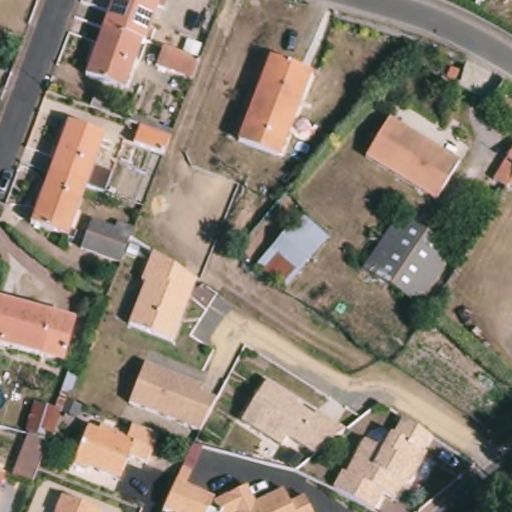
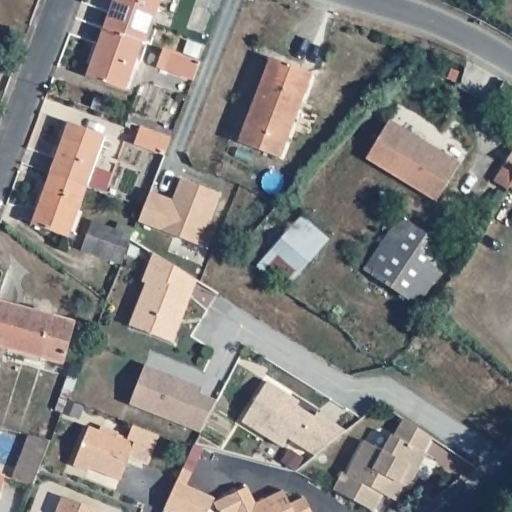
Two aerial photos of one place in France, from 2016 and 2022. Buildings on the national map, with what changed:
unchanged [(112,0),(160,0),(145,43),(142,42),(102,28),(112,0)]
unchanged [(142,42),(125,91),(85,76),(102,28),(142,42)]
unchanged [(191,81),(156,68),(163,49),(198,62),(191,81)]
unchanged [(306,78),(274,163),(231,147),(264,62),(306,78)]
unchanged [(95,96),(113,103),(109,115),(91,108),(95,96)]
unchanged [(458,163),(435,201),(364,158),(388,120),(458,163)]
unchanged [(68,121),(105,135),(86,185),(49,172),(68,121)]
unchanged [(169,136),(161,155),(133,145),(139,126),(169,136)]
unchanged [(501,194),(487,186),(512,146),(512,195),(504,191),(501,194)]
unchanged [(86,185),(67,236),(31,223),(49,172),(86,185)]
new [(147,191),(164,197),(162,201),(169,203),(179,178),(216,192),(196,244),(135,221),(147,191)]
unchanged [(273,246),(286,230),(301,215),(328,239),(283,291),(255,265),(273,246)]
unchanged [(453,251),(417,307),(362,269),(386,231),(397,216),(421,230),(453,251)]
unchanged [(124,244),(114,269),(76,254),(86,225),(125,239),(124,244)]
unchanged [(149,254),(193,280),(171,342),(128,327),(143,283),(138,281),(149,254)]
unchanged [(57,368),(0,352),(0,308),(67,327),(57,368)]
unchanged [(202,394),(218,400),(203,431),(132,404),(147,364),(205,386),(202,394)]
unchanged [(314,455),(287,437),(281,446),(241,420),(265,381),(288,396),(297,401),(294,405),(312,417),(315,412),(344,431),(326,445),(314,455)]
unchanged [(61,405),(46,445),(23,438),(19,437),(28,408),(49,414),(54,396),(63,399),(61,405)]
unchanged [(343,476),(361,443),(378,452),(387,436),(389,437),(398,419),(408,426),(425,438),(418,452),(421,454),(405,484),(399,486),(391,501),(378,495),(369,512),(330,491),(339,474),(343,476)]
unchanged [(112,439),(113,435),(124,439),(128,428),(140,434),(154,438),(146,462),(127,455),(119,479),(88,469),(87,473),(72,467),(86,429),(112,439)]
unchanged [(5,484),(23,438),(46,445),(34,472),(26,492),(5,484)]
unchanged [(182,479),(177,488),(207,503),(204,508),(203,512),(162,512),(159,511),(171,485),(176,476),(182,479)]
unchanged [(204,508),(238,492),(248,510),(275,498),(282,512),(297,506),(301,512),(203,512),(204,508)]
unchanged [(53,512),(56,502),(85,512),(53,512)]

